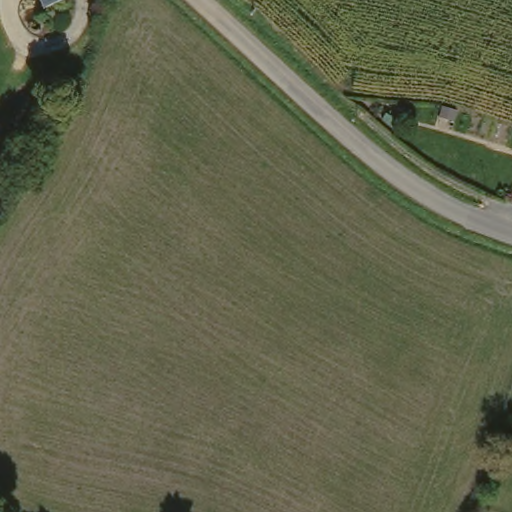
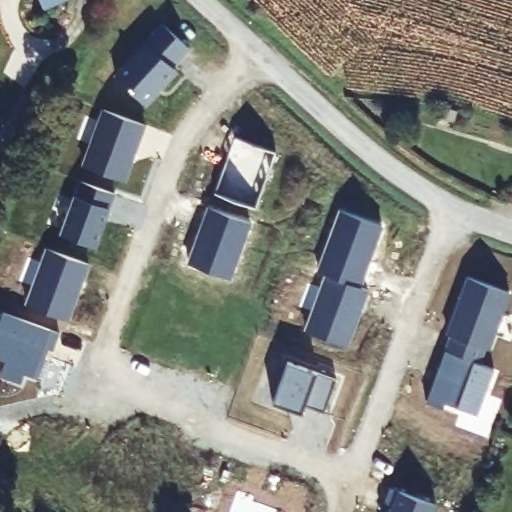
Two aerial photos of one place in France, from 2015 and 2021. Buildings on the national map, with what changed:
unchanged [(49,7),(45,0),(64,0),(53,5),(49,7)]
new [(164,27),(191,50),(174,69),(178,72),(148,106),(117,79),(164,27)]
new [(103,111),(145,125),(125,181),(84,167),(103,111)]
new [(235,138),(277,153),(257,209),(216,195),(235,138)]
new [(81,183),(115,195),(96,248),(63,237),(81,183)]
new [(211,209),(252,223),(233,280),(191,266),(211,209)]
new [(339,210),(381,224),(359,285),(327,274),(318,271),(339,210)]
new [(46,250),(88,264),(68,320),(27,306),(46,250)]
new [(327,274),(359,285),(368,288),(349,345),(308,331),(327,274)]
new [(451,337),(447,335),(466,278),(507,293),(488,349),(484,348),(479,363),(445,351),(451,337)]
new [(25,374),(21,384),(1,377),(6,362),(0,360),(0,320),(3,313),(60,333),(54,350),(49,349),(45,360),(38,379),(25,374)]
new [(445,351),(479,363),(494,368),(478,415),(446,404),(444,410),(427,404),(445,351)]
new [(288,362),(337,379),(325,412),(306,406),(304,414),(273,403),(288,362)]
new [(395,510),(385,506),(391,489),(437,505),(435,512),(394,512),(395,510)]

